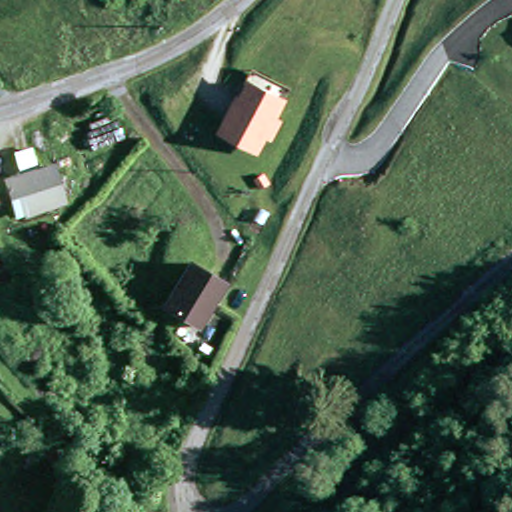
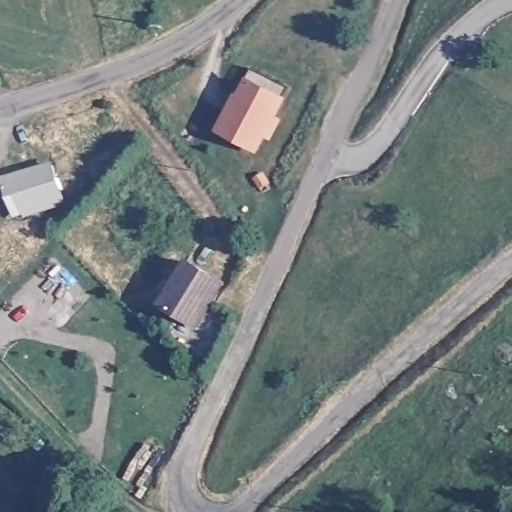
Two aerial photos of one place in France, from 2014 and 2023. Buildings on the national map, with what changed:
unchanged [(287,98),(279,114),(285,118),(272,141),(266,140),(259,153),(218,130),(239,90),(243,91),(250,79),(287,98)]
unchanged [(68,190),(63,192),(65,197),(24,213),(18,193),(12,173),(55,156),(68,190)]
unchanged [(68,267),(43,275),(38,261),(63,252),(68,267)]
unchanged [(228,283),(205,324),(166,302),(191,260),(228,283)]

